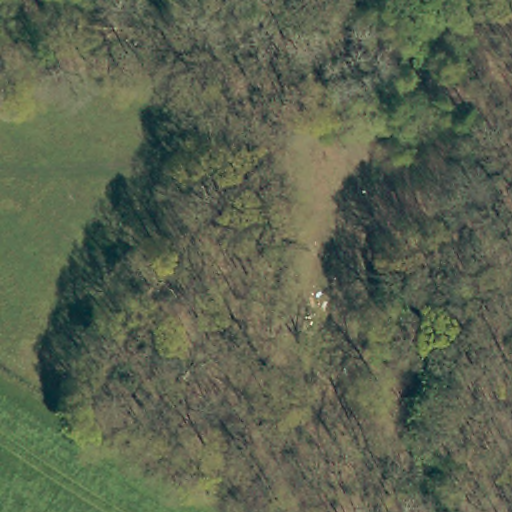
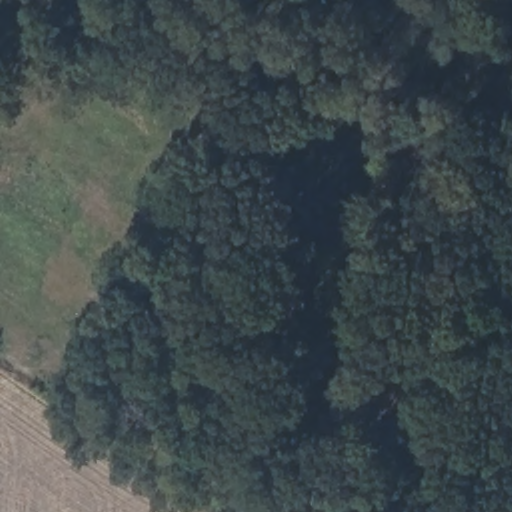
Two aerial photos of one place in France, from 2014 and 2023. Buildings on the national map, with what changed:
unchanged [(307,299),(302,328),(275,323),(290,237),(311,241),(311,243),(310,246),(318,246),(315,265),(308,263),(305,286),(310,287),(307,299)]

